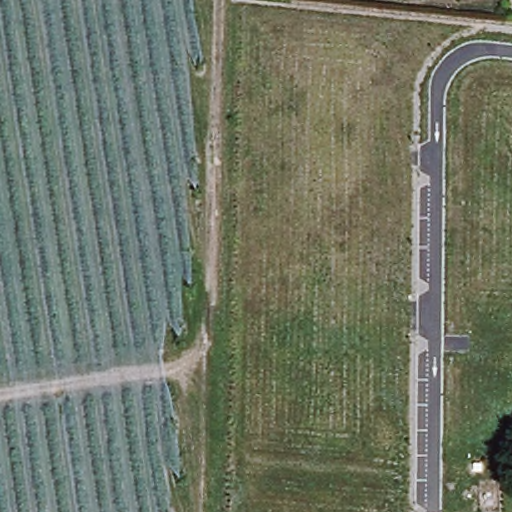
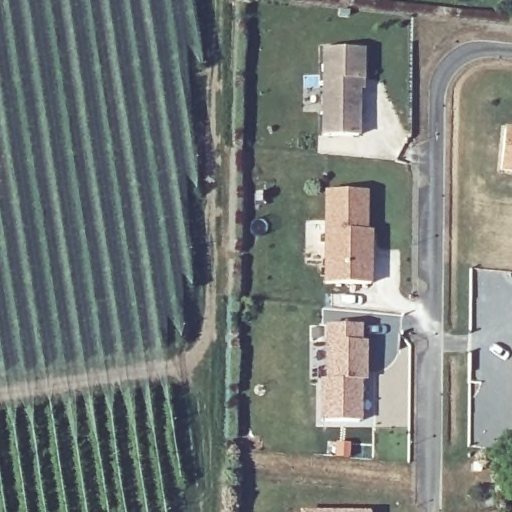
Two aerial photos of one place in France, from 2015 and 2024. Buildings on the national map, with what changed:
new [(364,50),(363,91),(361,91),(360,138),(320,137),(322,49),(364,50)]
new [(512,131),(512,171),(501,169),(504,130),(512,131)]
new [(327,193),(367,193),(367,233),(370,239),(370,277),(326,285),(327,193)]
new [(324,388),(328,379),(329,334),(361,325),(361,341),(366,341),(366,371),(361,371),(360,421),(323,421),(324,388)]

